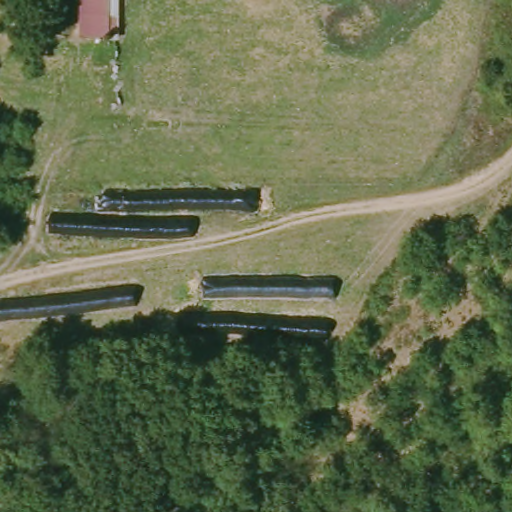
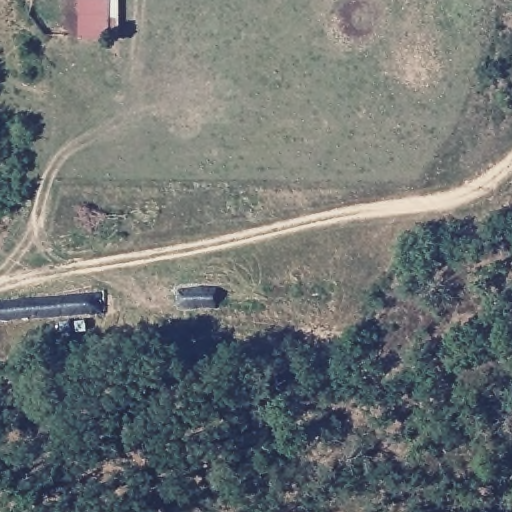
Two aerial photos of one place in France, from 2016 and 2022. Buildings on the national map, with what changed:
unchanged [(107,0),(105,41),(75,41),(75,0),(107,0)]

